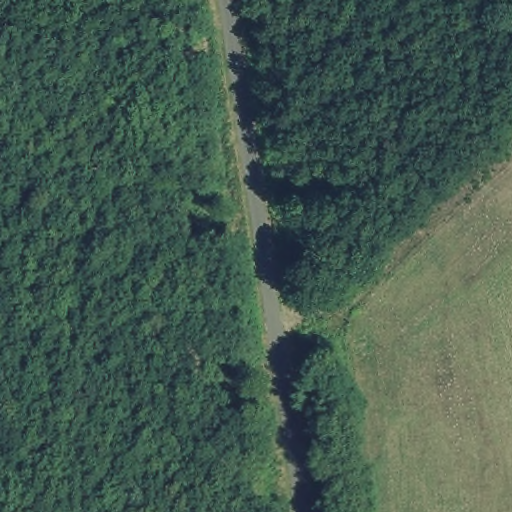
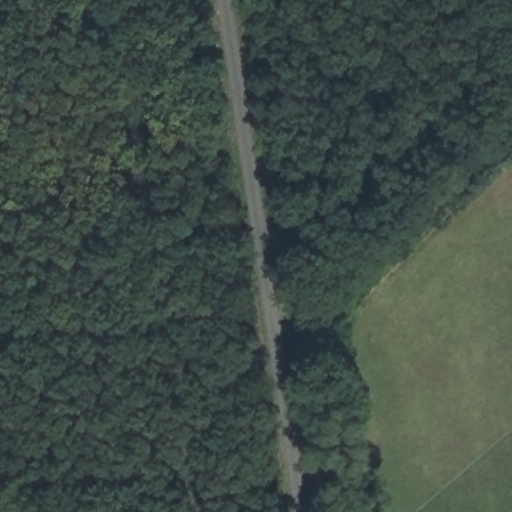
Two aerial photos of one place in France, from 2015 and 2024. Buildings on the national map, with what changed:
unchanged [(341,314),(332,278),(373,270),(381,306),(341,314)]

